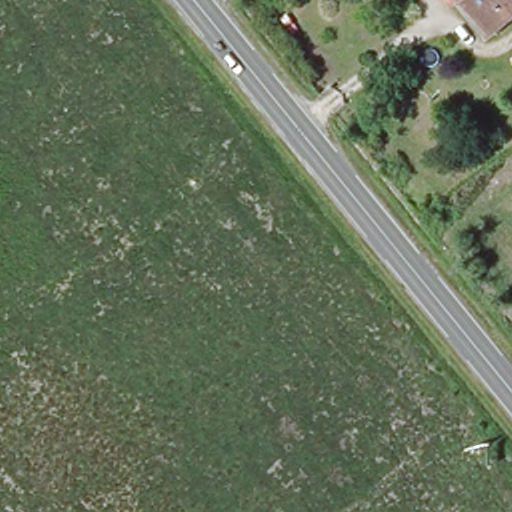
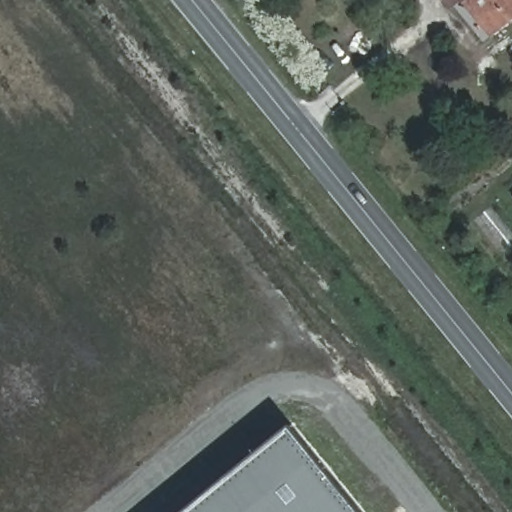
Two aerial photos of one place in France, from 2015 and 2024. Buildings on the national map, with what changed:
unchanged [(465,2),(464,0),(467,0),(465,2)]
unchanged [(509,13),(500,0),(512,0),(512,10),(509,13)]
new [(194,512),(295,430),(362,512),(194,512)]

